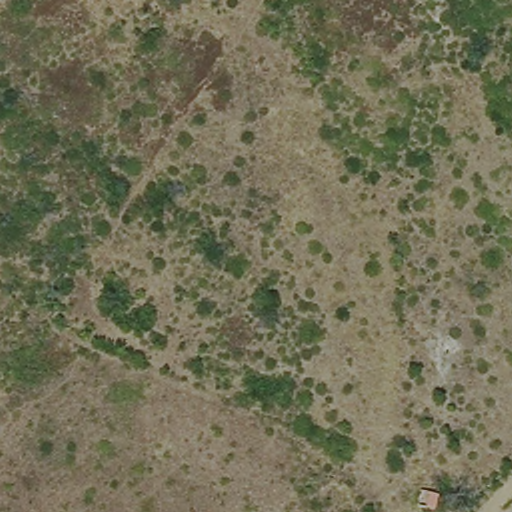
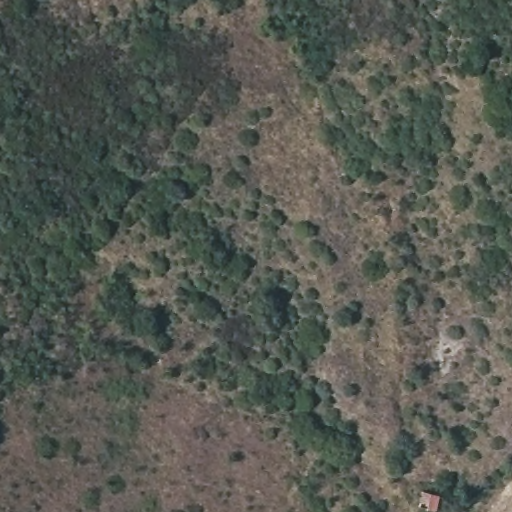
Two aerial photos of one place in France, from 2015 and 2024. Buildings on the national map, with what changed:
unchanged [(432,509),(415,501),(422,485),(439,492),(432,509)]

